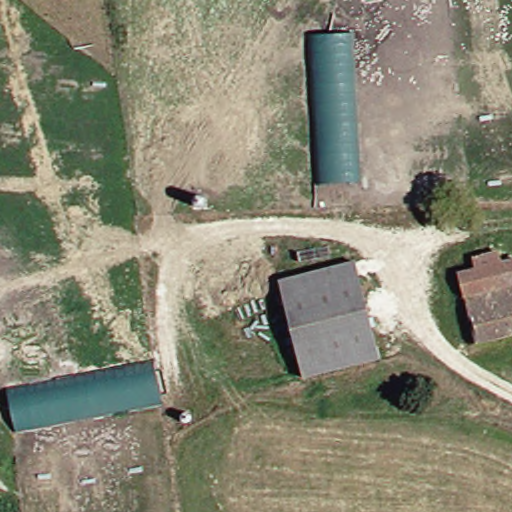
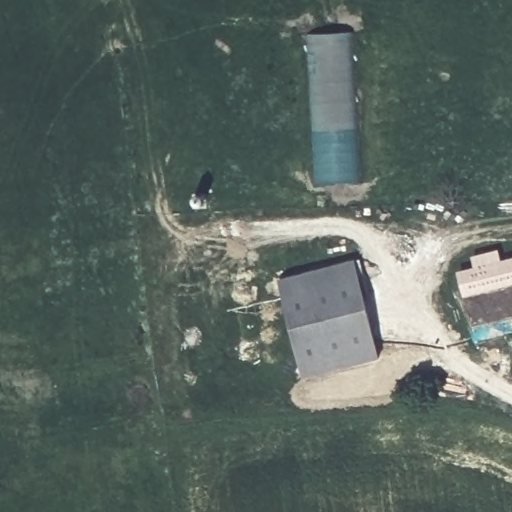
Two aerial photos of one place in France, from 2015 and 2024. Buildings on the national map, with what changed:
unchanged [(347,33),(356,184),(314,187),(306,37),(347,33)]
unchanged [(478,340),(466,273),(481,269),(480,257),(505,253),(509,269),(512,269),(512,334),(478,340)]
unchanged [(382,362),(307,378),(284,278),(361,261),(382,362)]
demolished [(9,383),(152,356),(159,397),(16,424),(9,383)]

